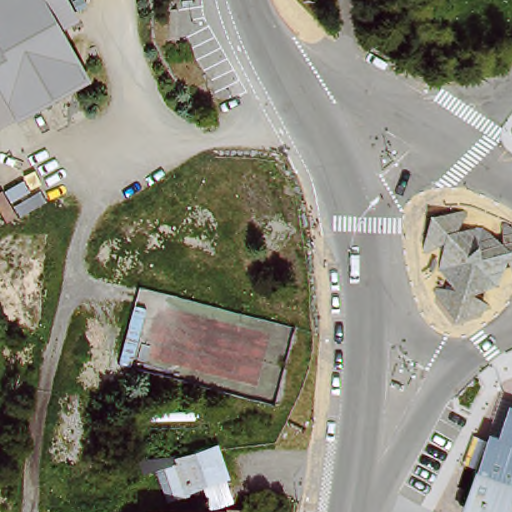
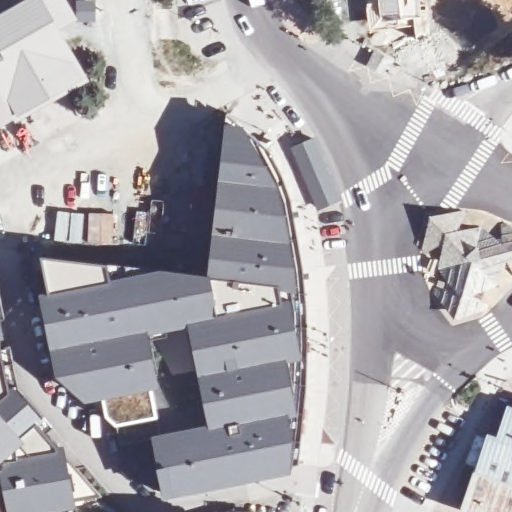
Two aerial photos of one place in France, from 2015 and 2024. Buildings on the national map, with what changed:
unchanged [(0,47),(0,0),(42,0),(60,36),(47,42),(6,59),(0,47)]
new [(415,40),(413,29),(371,33),(367,0),(432,0),(432,36),(415,40)]
unchanged [(0,62),(6,59),(47,42),(72,93),(75,100),(17,124),(0,92),(0,62)]
new [(268,149),(277,163),(286,187),(293,217),(302,257),(306,303),(308,352),(298,464),(291,471),(163,497),(157,466),(152,434),(120,443),(117,426),(105,416),(103,397),(85,401),(57,375),(40,293),(49,291),(40,255),(105,263),(158,268),(207,274),(225,122),(227,115),(268,149)]
unchanged [(0,122),(4,130),(0,132),(0,122)]
unchanged [(453,224),(470,243),(483,239),(493,250),(512,245),(512,274),(497,278),(492,293),(483,296),(477,316),(443,307),(450,287),(442,276),(446,261),(430,244),(435,229),(453,224)]
new [(0,337),(0,315),(5,337),(0,337)]
new [(50,512),(8,512),(0,485),(0,344),(0,347),(8,346),(17,388),(52,425),(45,432),(57,445),(65,444),(67,457),(101,497),(77,506),(50,512)]
unchanged [(468,511),(482,459),(490,462),(496,442),(506,445),(512,425),(512,512),(472,512),(468,511)]
demolished [(178,463),(213,455),(221,482),(187,490),(178,463)]
unchanged [(221,511),(221,512),(218,512),(221,511)]

